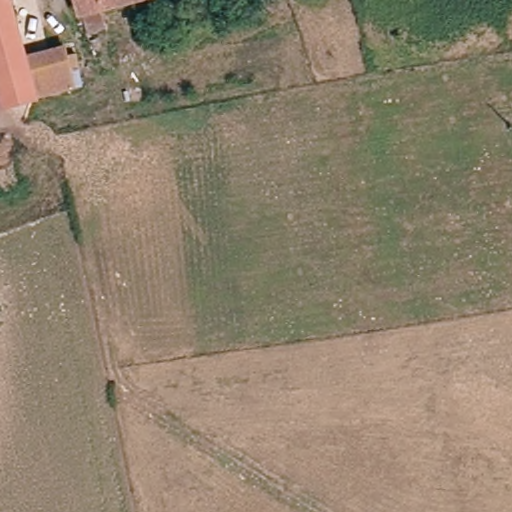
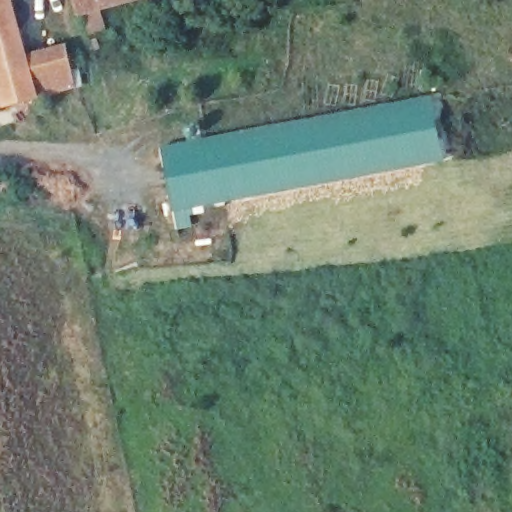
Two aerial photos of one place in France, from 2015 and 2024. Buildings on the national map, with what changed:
unchanged [(30,59),(69,48),(79,86),(0,107),(0,0),(15,0),(30,59)]
unchanged [(77,0),(133,0),(81,14),(77,0)]
new [(270,122),(438,93),(446,160),(418,166),(190,210),(192,226),(176,229),(159,145),(270,122)]

